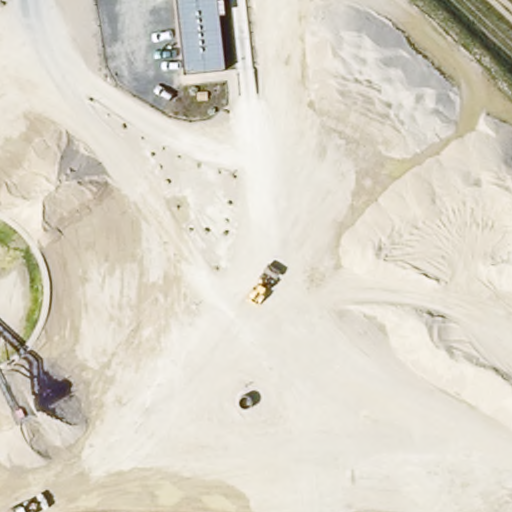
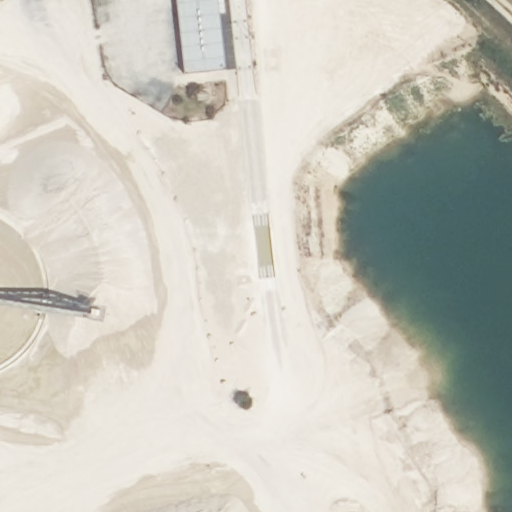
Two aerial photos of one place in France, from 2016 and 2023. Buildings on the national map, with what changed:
unchanged [(225,70),(184,75),(177,0),(217,0),(225,70)]

